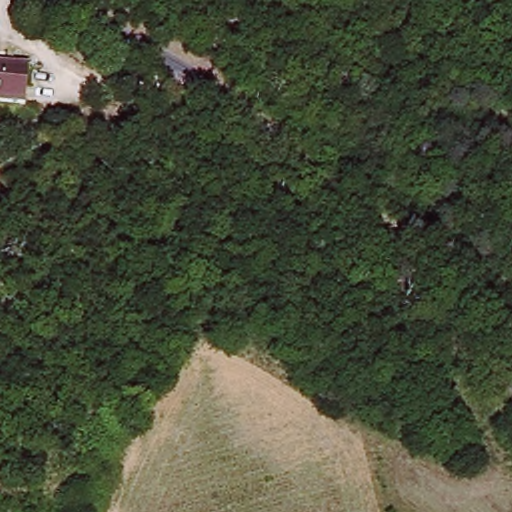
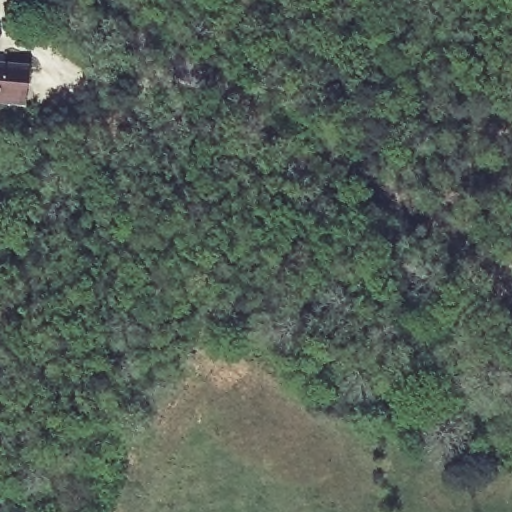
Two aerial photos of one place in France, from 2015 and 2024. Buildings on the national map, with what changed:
unchanged [(17,108),(0,106),(0,70),(22,72),(17,108)]

